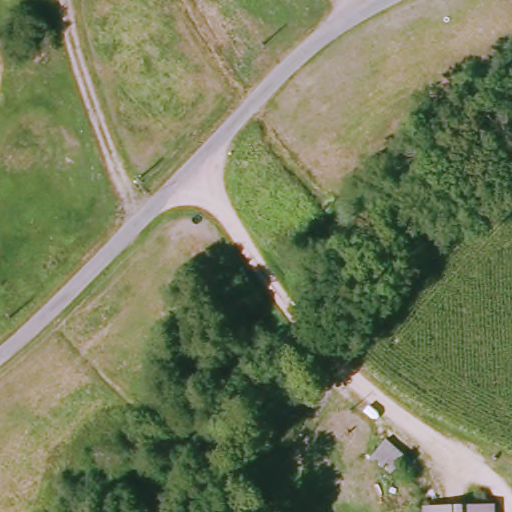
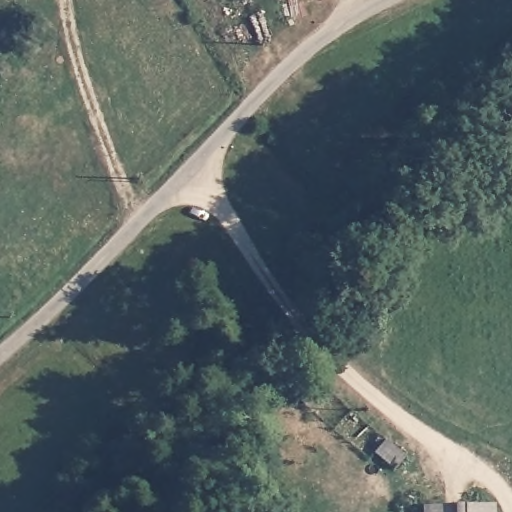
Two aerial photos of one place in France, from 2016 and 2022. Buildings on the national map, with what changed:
unchanged [(317,384),(301,402),(292,394),(307,376),(317,384)]
unchanged [(391,467),(375,452),(383,443),(400,458),(391,467)]
unchanged [(490,508),(490,512),(419,512),(419,510),(490,508)]

